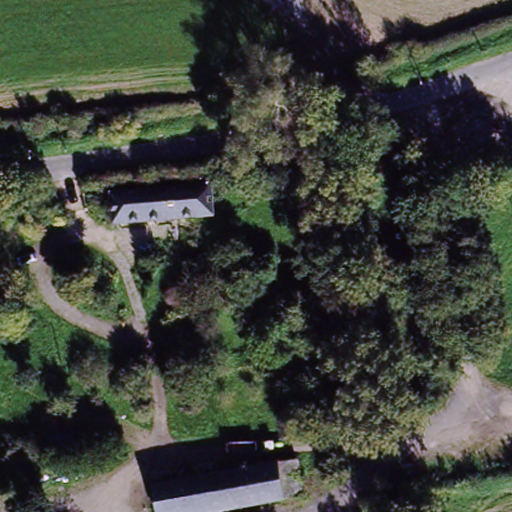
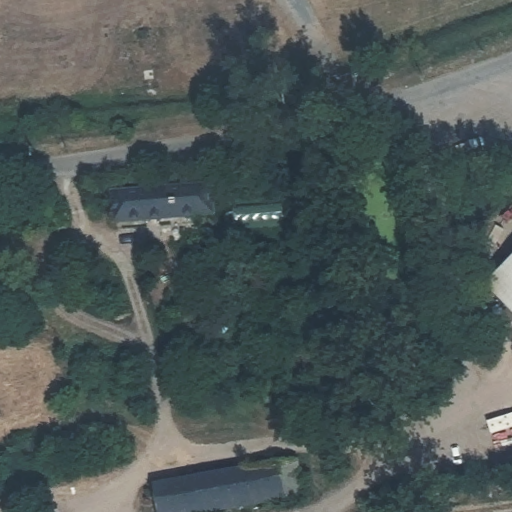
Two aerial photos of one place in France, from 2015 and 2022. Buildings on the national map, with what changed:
unchanged [(50,188),(53,214),(33,217),(30,190),(50,188)]
unchanged [(213,189),(214,217),(115,221),(114,193),(213,189)]
unchanged [(4,217),(0,217),(0,202),(3,202),(4,217)]
new [(486,288),(512,262),(512,316),(486,288)]
unchanged [(266,466),(288,463),(295,499),(273,503),(221,512),(148,512),(144,488),(266,466)]

